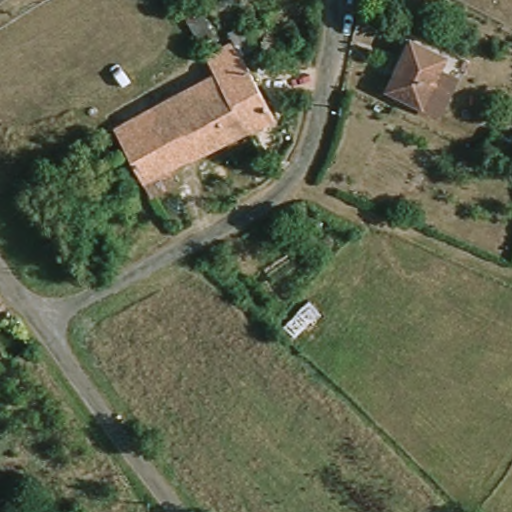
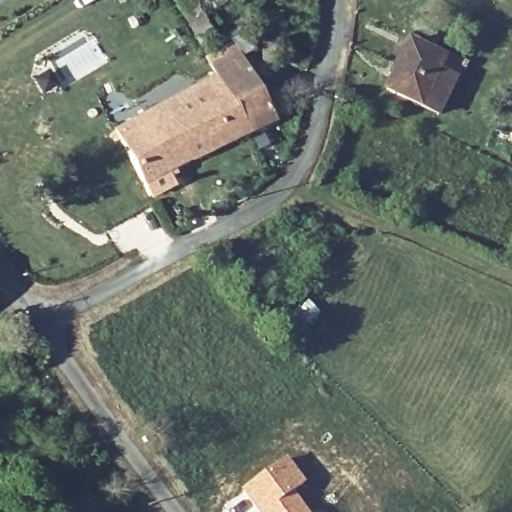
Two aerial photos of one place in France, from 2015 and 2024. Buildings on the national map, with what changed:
unchanged [(214,36),(201,42),(188,18),(200,12),(214,36)]
unchanged [(412,37),(449,55),(438,70),(460,78),(440,116),(386,90),(412,37)]
unchanged [(238,40),(273,112),(245,126),(216,71),(208,53),(238,40)]
unchanged [(115,132),(216,71),(245,126),(165,167),(172,181),(149,193),(115,132)]
new [(285,455),(306,483),(294,492),(308,512),(255,512),(240,489),(285,455)]

